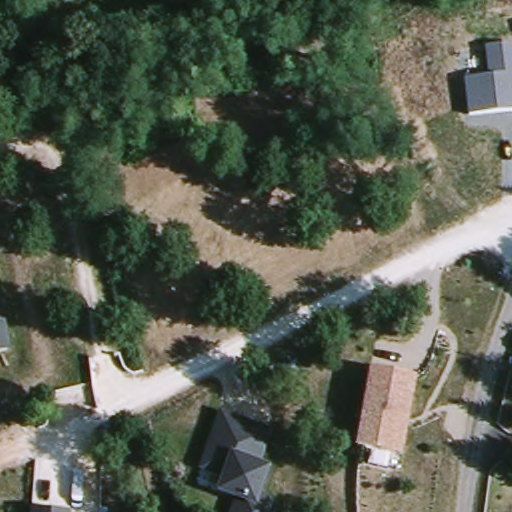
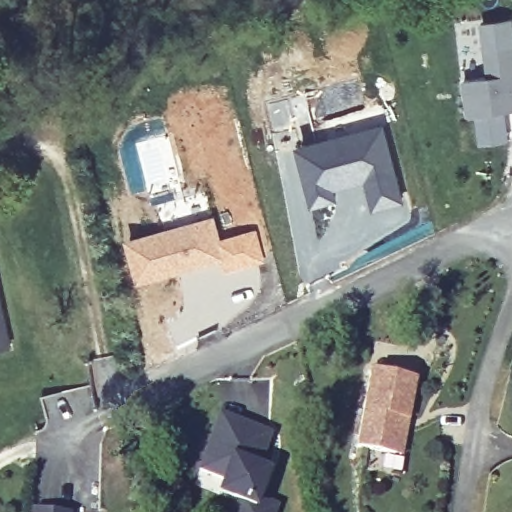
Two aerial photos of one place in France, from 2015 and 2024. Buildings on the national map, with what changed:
unchanged [(487,77),(484,48),(512,44),(512,111),(468,117),(464,80),(487,77)]
new [(334,183),(338,198),(317,203),(303,147),(385,127),(404,200),(378,207),(370,178),(347,184),(336,187),(334,183)]
new [(126,241),(213,216),(225,258),(138,282),(126,241)]
unchanged [(11,350),(0,352),(0,300),(11,350)]
unchanged [(357,449),(370,369),(417,377),(404,457),(357,449)]
unchanged [(200,469),(222,412),(273,430),(260,465),(270,469),(262,491),(283,502),(279,512),(232,512),(237,501),(217,493),(223,477),(200,469)]
unchanged [(70,512),(69,512),(35,512),(36,510),(70,512)]

